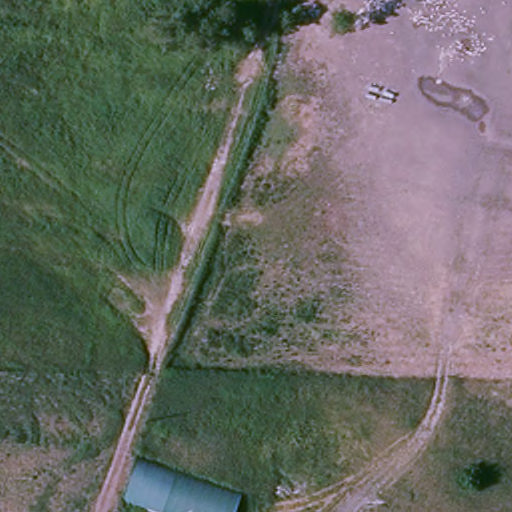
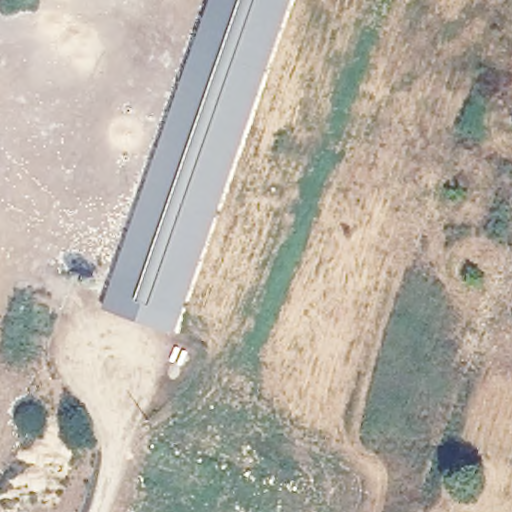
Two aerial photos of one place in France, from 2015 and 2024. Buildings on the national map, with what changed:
new [(210,0),(292,0),(178,331),(106,308),(210,0)]
demolished [(126,500),(141,458),(244,493),(237,512),(161,512),(126,500)]

